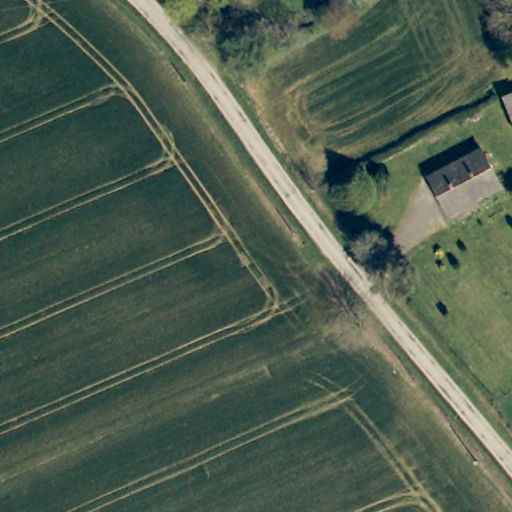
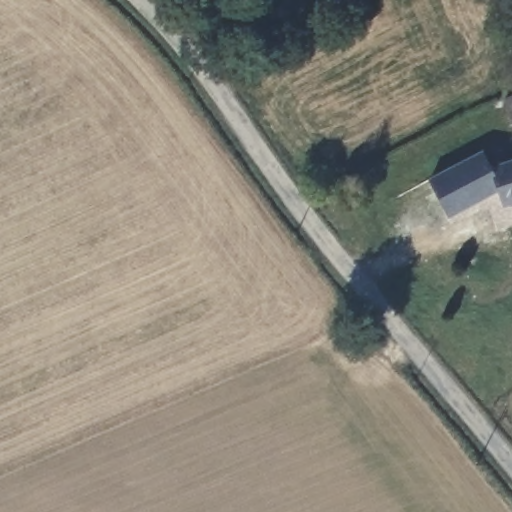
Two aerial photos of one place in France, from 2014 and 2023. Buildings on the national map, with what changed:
unchanged [(512,95),(512,119),(504,99),(512,95)]
unchanged [(490,165),(512,156),(512,203),(504,206),(498,190),(451,219),(430,180),(482,150),(490,165)]

